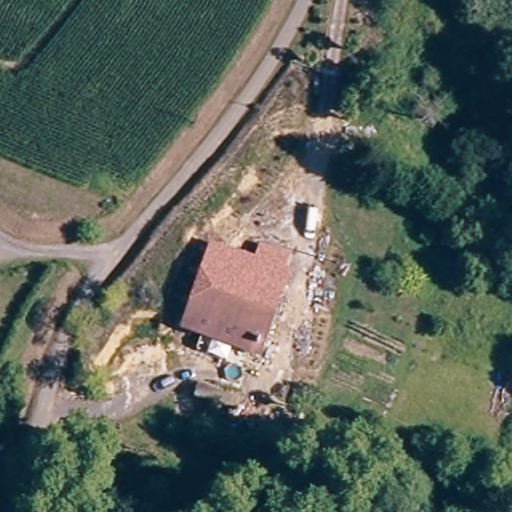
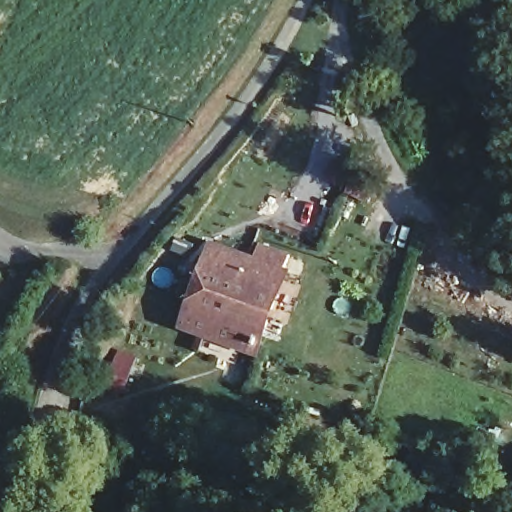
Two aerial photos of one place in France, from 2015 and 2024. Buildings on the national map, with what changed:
unchanged [(262,252),(291,264),(256,361),(182,336),(211,256),(253,268),(262,252)]

